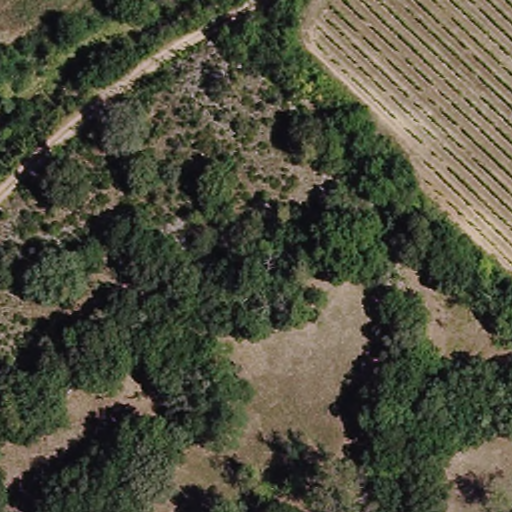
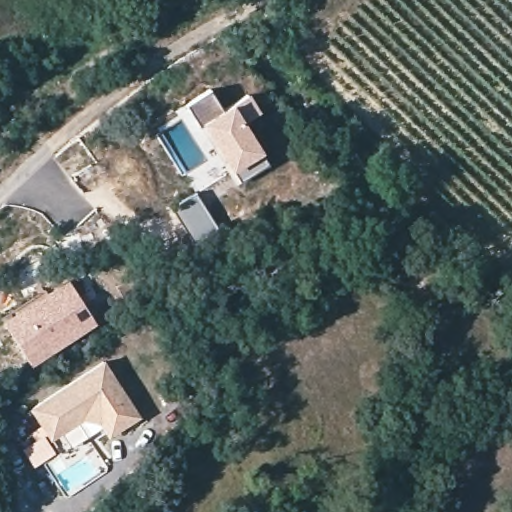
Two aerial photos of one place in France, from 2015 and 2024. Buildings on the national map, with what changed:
new [(260,112),(244,123),(262,152),(267,164),(239,182),(232,171),(201,124),(197,126),(185,106),(209,91),(222,110),(230,103),(248,94),(260,112)]
new [(196,194),(218,229),(194,245),(170,209),(196,194)]
new [(66,279),(96,325),(31,367),(2,322),(66,279)]
new [(140,417),(108,437),(97,423),(80,420),(51,437),(31,409),(102,360),(140,417)]

